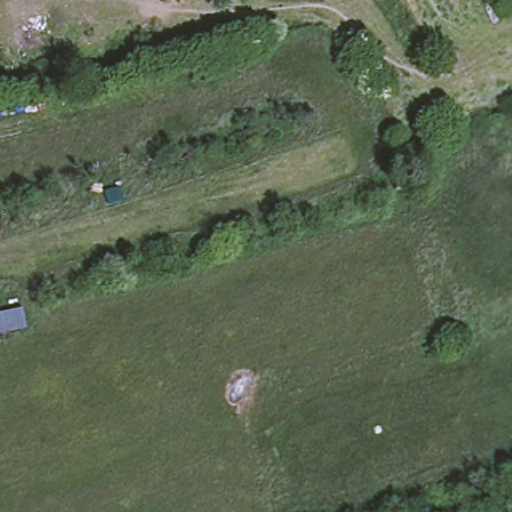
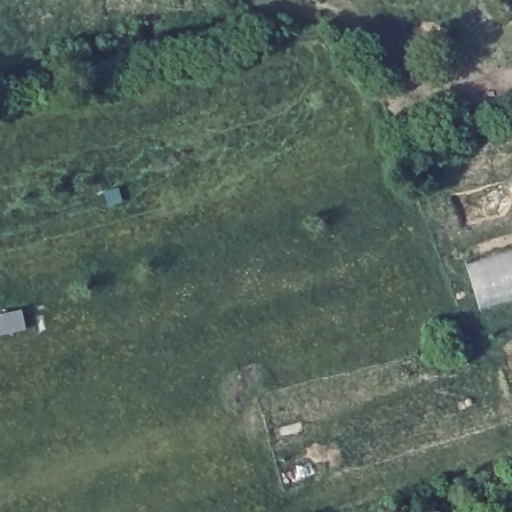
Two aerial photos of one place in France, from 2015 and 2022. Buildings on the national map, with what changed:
new [(512,300),(480,308),(469,264),(512,251),(512,300)]

